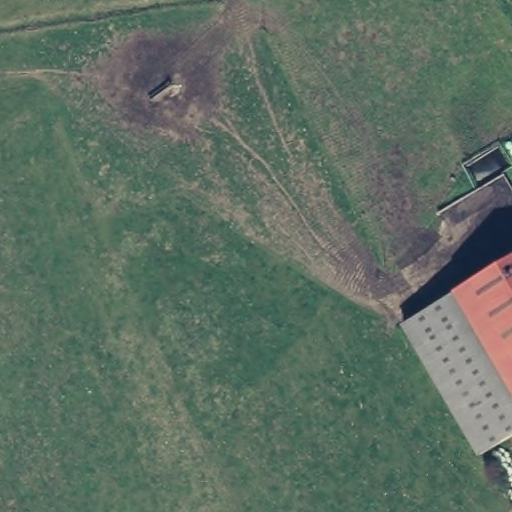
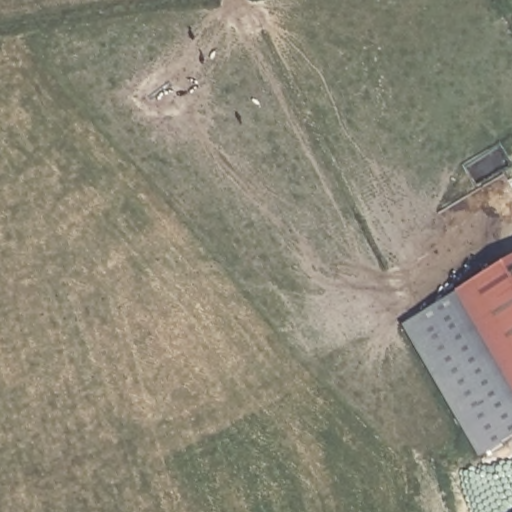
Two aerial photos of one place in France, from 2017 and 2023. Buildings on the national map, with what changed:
unchanged [(399,328),(512,261),(512,433),(473,455),(399,328)]

